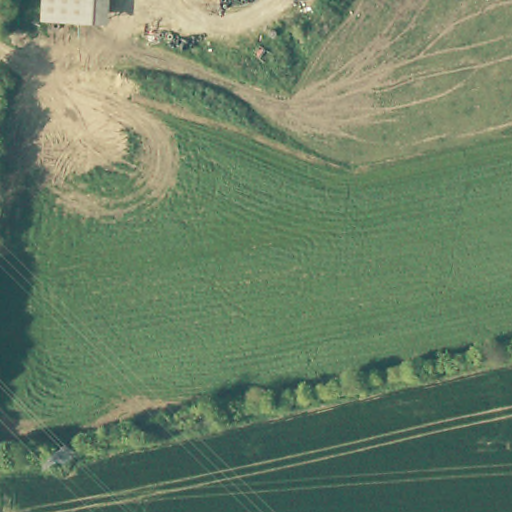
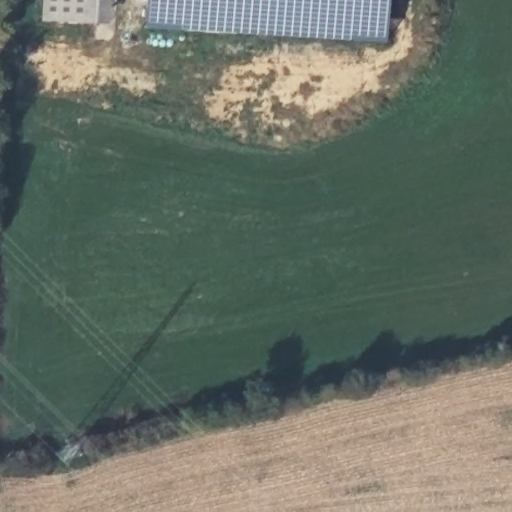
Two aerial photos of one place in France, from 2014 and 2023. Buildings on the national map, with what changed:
unchanged [(96,22),(43,19),(45,0),(98,0),(96,22)]
new [(98,0),(112,0),(110,23),(96,22),(98,0)]
new [(144,28),(146,0),(387,0),(385,42),(144,28)]

